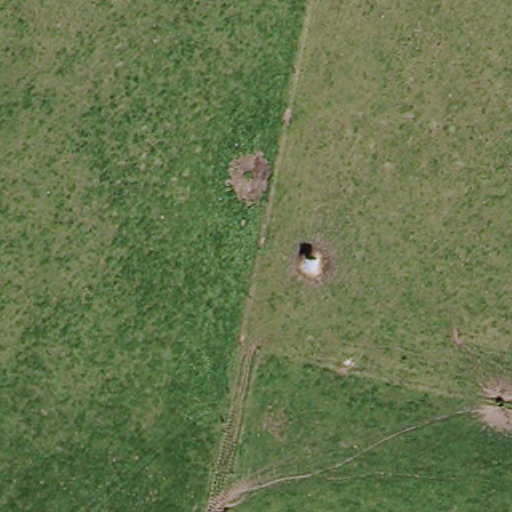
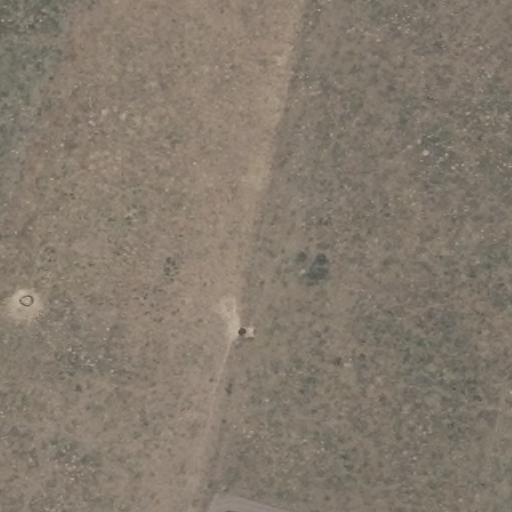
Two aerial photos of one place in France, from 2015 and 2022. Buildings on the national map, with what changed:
[]

